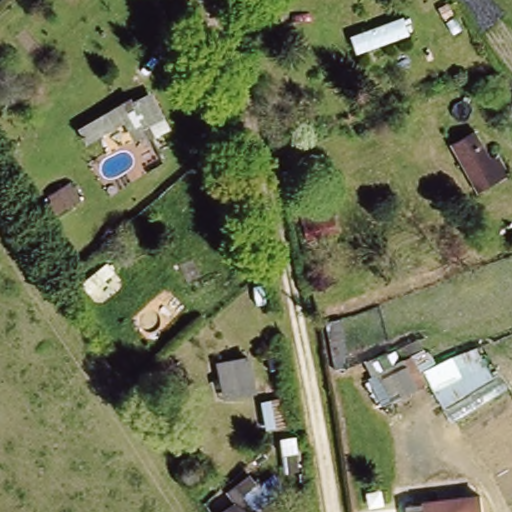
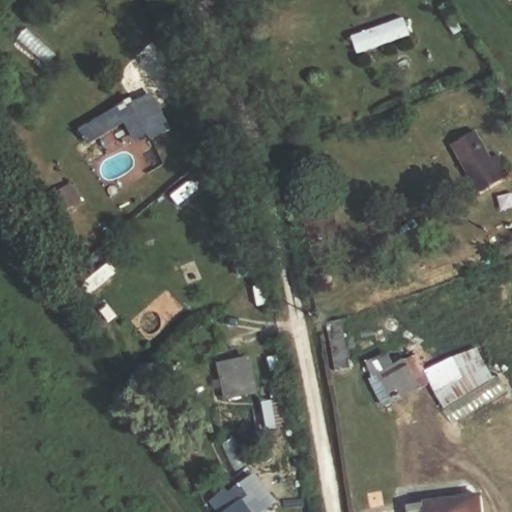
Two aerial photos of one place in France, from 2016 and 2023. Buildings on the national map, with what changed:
unchanged [(404,19),(411,34),(361,55),(354,37),(404,19)]
unchanged [(173,126),(135,145),(124,123),(93,143),(80,125),(152,83),(173,126)]
unchanged [(511,172),(481,190),(446,141),(477,124),(511,172)]
unchanged [(329,202),(353,202),(353,222),(329,222),(329,202)]
unchanged [(444,362),(478,341),(500,374),(445,407),(427,381),(384,406),(357,364),(419,333),(444,362)]
unchanged [(256,353),(263,392),(223,399),(216,358),(256,353)]
unchanged [(263,401),(285,396),(291,423),(268,428),(263,401)]
unchanged [(283,437),(299,436),(301,451),(286,453),(283,437)]
unchanged [(259,486),(277,473),(291,499),(276,512),(213,512),(205,502),(251,471),(259,486)]
unchanged [(486,512),(410,512),(409,501),(482,488),(486,512)]

